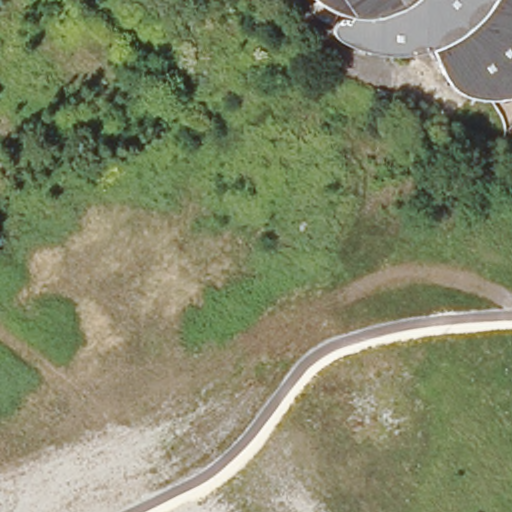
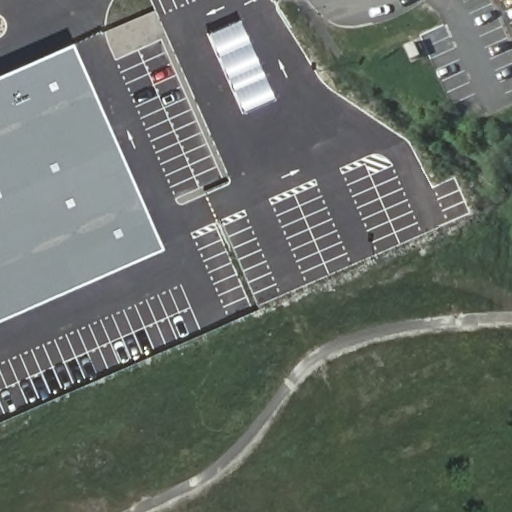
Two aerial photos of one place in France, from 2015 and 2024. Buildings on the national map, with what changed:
demolished [(331,23),(330,20),(329,17),(330,15),(332,13),(334,12),(337,12),(339,12),(341,12),(342,7),(339,7),(336,5),(332,4),(327,2),(325,0),(512,0),(512,87),(506,89),(497,91),(491,92),(482,92),(477,92),(472,92),(467,90),(460,87),(456,85),(451,80),(447,76),(444,72),(442,68),(438,64),(435,57),(431,47),(427,41),(424,42),(419,42),(415,44),(410,44),(405,45),(402,45),(397,45),(393,45),(389,45),(384,45),(380,44),(375,43),(371,42),(367,42),(362,41),(358,39),(353,37),(349,36),(345,34),(342,32),(337,30),(335,27),(332,25),(331,23)]
new [(160,250),(0,320),(0,74),(70,44),(160,250)]

